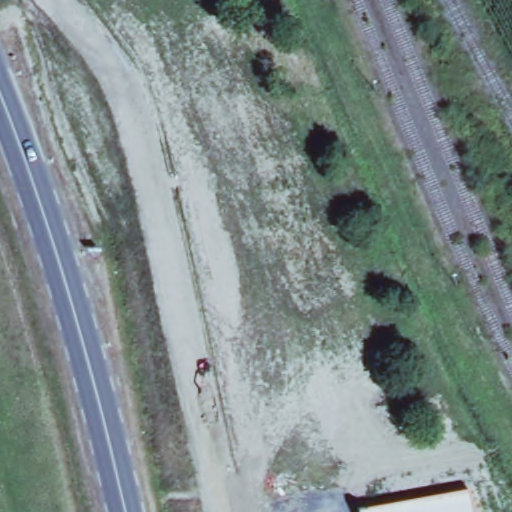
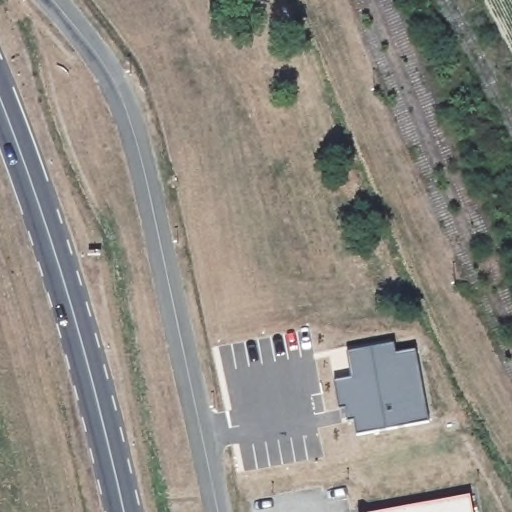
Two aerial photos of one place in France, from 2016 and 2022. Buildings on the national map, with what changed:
new [(358,433),(356,420),(350,421),(347,407),(341,409),(336,381),(353,378),(348,353),(394,344),(396,354),(416,350),(429,421),(358,433)]
unchanged [(472,512),(382,512),(469,496),(472,512)]

